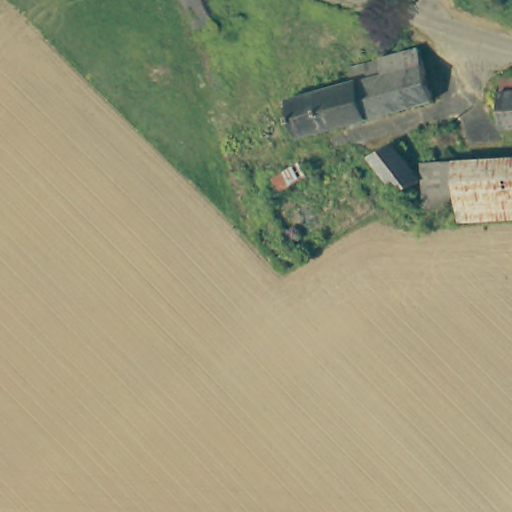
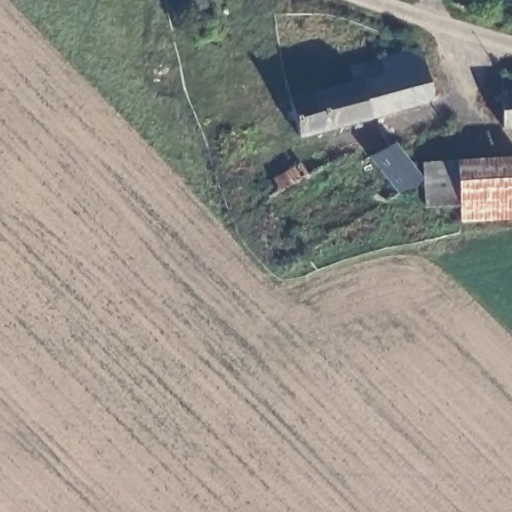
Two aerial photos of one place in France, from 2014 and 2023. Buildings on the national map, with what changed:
unchanged [(181,0),(211,0),(213,6),(221,2),(226,13),(219,16),(223,28),(195,39),(181,0)]
unchanged [(271,102),(306,94),(353,82),(349,67),(380,57),(419,47),(433,100),(345,123),(282,140),(271,102)]
unchanged [(502,128),(500,91),(512,91),(512,128),(502,128)]
unchanged [(397,197),(370,161),(390,145),(418,181),(397,197)]
unchanged [(458,165),(512,163),(512,223),(460,225),(459,210),(425,211),(422,167),(458,165)]

